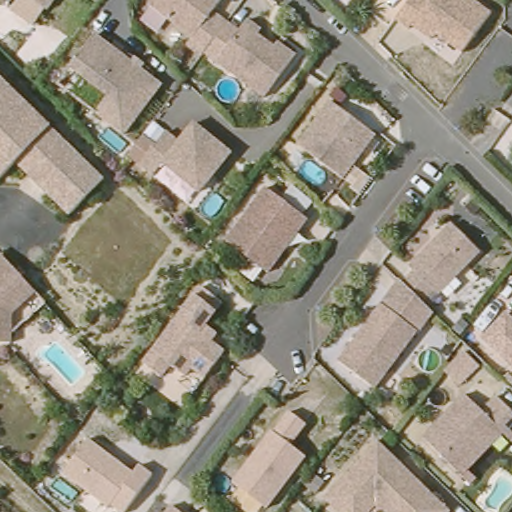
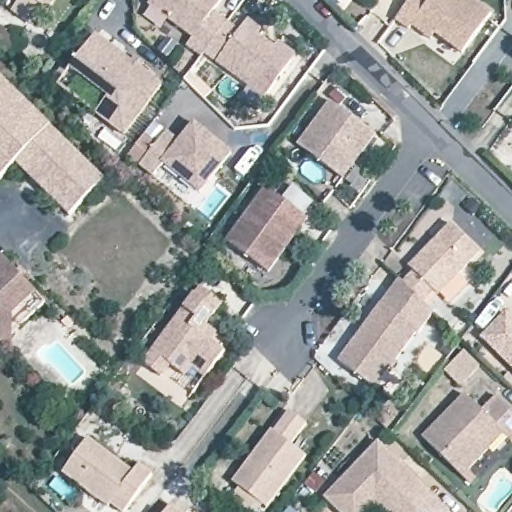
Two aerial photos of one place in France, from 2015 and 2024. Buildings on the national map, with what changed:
unchanged [(47,1),(45,0),(49,0),(47,1)]
unchanged [(216,4),(229,13),(213,34),(203,46),(149,4),(152,0),(219,0),(216,4)]
unchanged [(495,10),(465,56),(402,18),(408,0),(481,0),(495,10)]
unchanged [(263,21),(260,26),(276,39),(280,34),(297,47),(265,89),(218,51),(225,43),(213,34),(229,13),(231,10),(243,19),(250,10),(263,21)]
unchanged [(161,81),(123,130),(96,109),(109,91),(71,62),(96,30),(161,81)]
unchanged [(96,109),(58,79),(71,62),(109,91),(96,109)]
unchanged [(17,161),(5,177),(0,172),(0,76),(104,173),(71,210),(17,161)]
unchanged [(381,128),(347,172),(303,137),(337,94),(381,128)]
unchanged [(167,127),(180,137),(195,118),(232,147),(202,186),(165,158),(155,171),(142,160),(167,127)]
unchanged [(268,267),(227,235),(267,183),(309,215),(268,267)]
unchanged [(479,248),(436,290),(431,285),(420,296),(401,277),(413,266),(408,261),(451,220),(479,248)]
unchanged [(6,331),(5,339),(0,339),(0,255),(30,290),(40,301),(6,331)]
unchanged [(420,296),(433,310),(417,330),(416,330),(374,385),(340,357),(401,277),(420,296)]
unchanged [(225,295),(201,325),(225,345),(206,369),(192,358),(185,367),(171,355),(161,367),(145,353),(205,278),(225,295)]
unchanged [(503,315),(512,325),(512,373),(480,339),(503,315)]
unchanged [(503,430),(461,470),(423,431),(465,390),(482,406),(497,392),(512,407),(512,438),(511,438),(503,430)]
unchanged [(313,421),(297,441),(312,453),(271,504),(239,477),(280,426),(281,428),(297,408),(313,421)]
unchanged [(95,425),(136,459),(142,451),(155,462),(126,498),(113,488),(111,491),(70,457),(95,425)]
unchanged [(364,512),(339,512),(321,494),(376,440),(446,512),(380,512),(372,504),(364,512)]
unchanged [(161,512),(172,497),(190,512),(161,512)]

